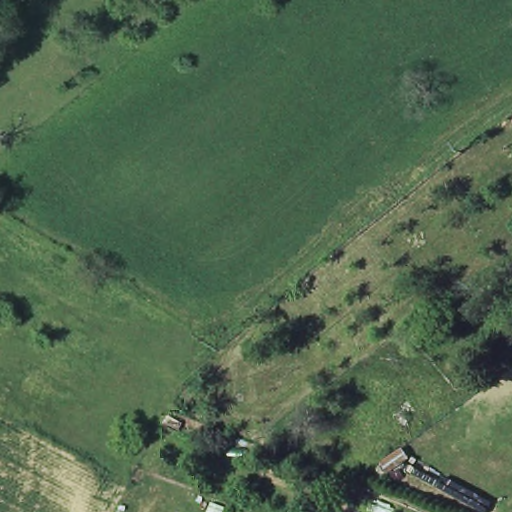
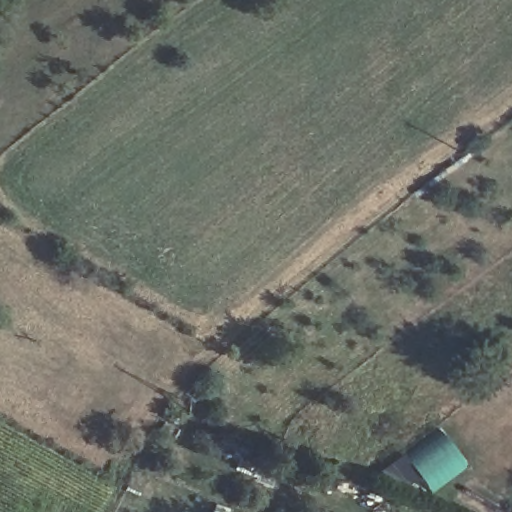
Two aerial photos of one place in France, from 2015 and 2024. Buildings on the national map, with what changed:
new [(470,469),(432,494),(404,453),(441,426),(470,469)]

